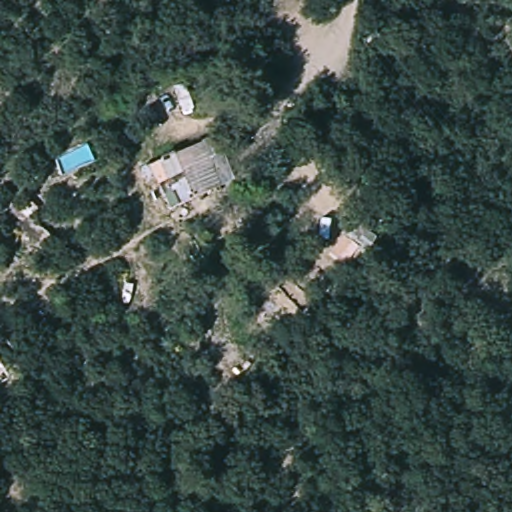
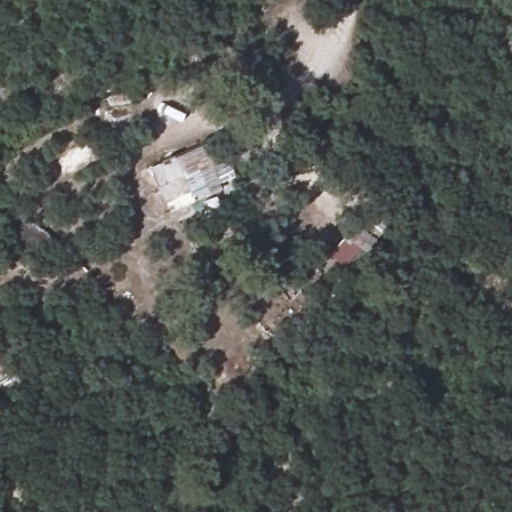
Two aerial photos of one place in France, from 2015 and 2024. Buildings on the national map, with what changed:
unchanged [(218,184),(219,187),(167,209),(148,167),(158,163),(157,159),(172,153),(173,155),(204,141),(210,160),(217,158),(225,181),(218,184)]
unchanged [(370,260),(363,254),(346,273),(325,256),(343,235),(362,227),(377,237),(374,242),(380,246),(370,260)]
unchanged [(0,375),(0,359),(5,373),(0,375)]

